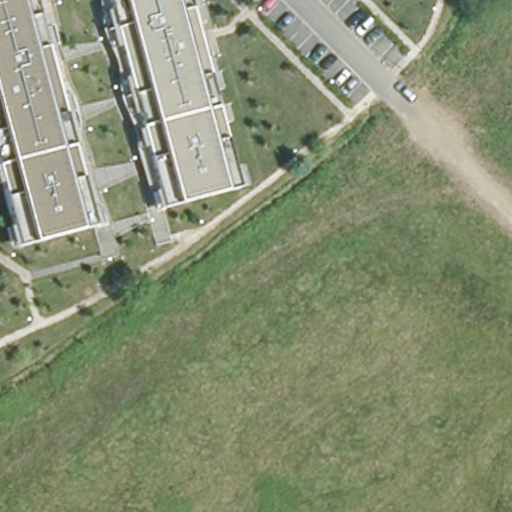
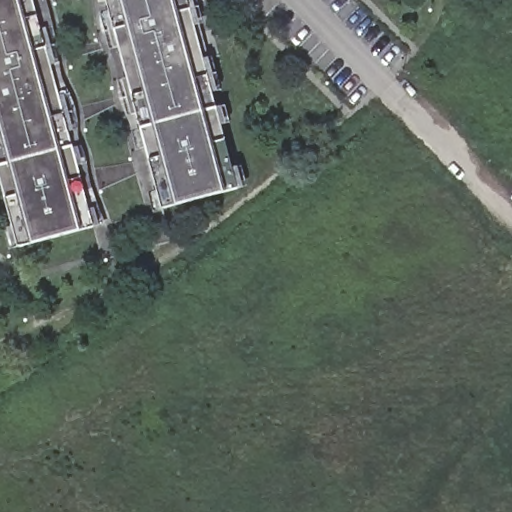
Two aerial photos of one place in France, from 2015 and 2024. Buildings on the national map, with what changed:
unchanged [(81,230),(34,244),(16,249),(0,187),(0,0),(47,0),(55,25),(62,60),(66,80),(70,90),(76,102),(81,128),(81,135),(84,145),(87,157),(91,174),(92,185),(97,200),(104,225),(97,226),(81,230)]
unchanged [(240,190),(224,194),(177,207),(161,211),(155,211),(135,154),(134,139),(126,118),(116,86),(117,75),(114,60),(102,36),(100,20),(99,1),(98,0),(189,0),(240,190)]

